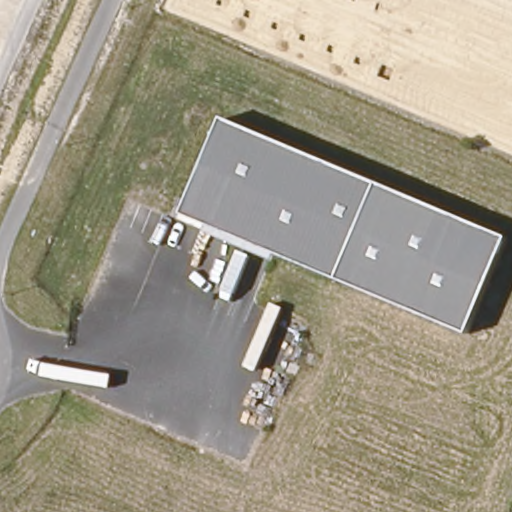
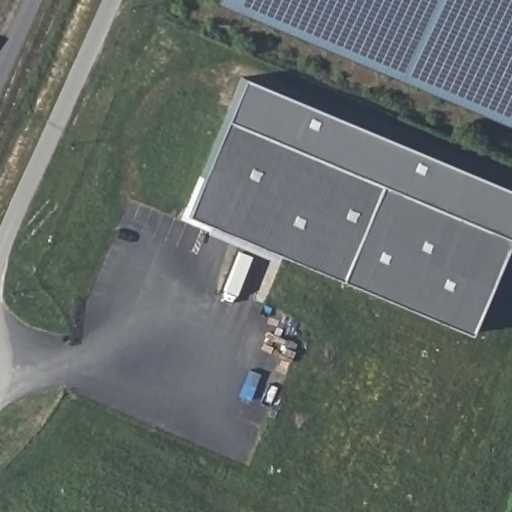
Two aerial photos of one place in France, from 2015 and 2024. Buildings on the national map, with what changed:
new [(217,3),(218,0),(512,0),(512,127),(217,3)]
new [(243,77),(512,191),(512,233),(509,240),(381,182),(225,119),(243,77)]
unchanged [(339,279),(186,212),(225,119),(381,182),(339,279)]
unchanged [(381,182),(509,240),(469,335),(339,279),(381,182)]

